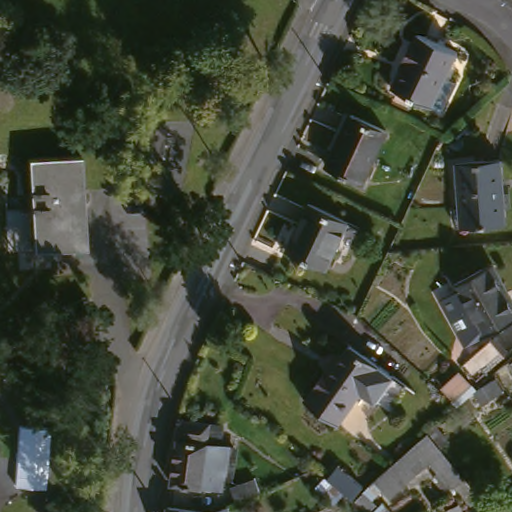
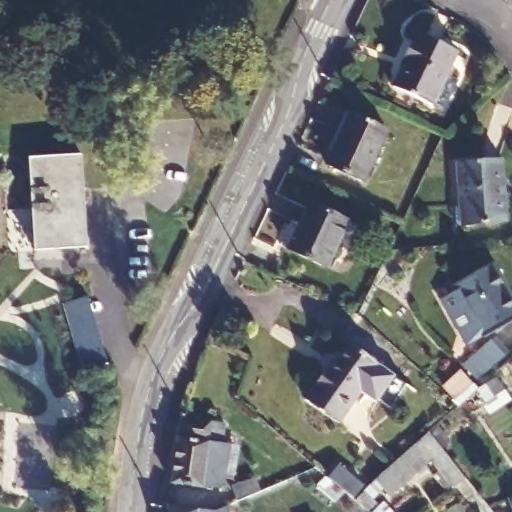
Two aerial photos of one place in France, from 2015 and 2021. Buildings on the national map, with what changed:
unchanged [(384,90),(395,66),(392,64),(402,43),(405,44),(410,34),(449,54),(437,79),(449,84),(434,114),(422,108),(384,90)]
unchanged [(384,129),(359,182),(323,166),(350,111),(384,129)]
unchanged [(84,250),(33,252),(29,158),(80,157),(84,250)]
unchanged [(504,161),(504,221),(461,224),(459,164),(504,161)]
unchanged [(349,225),(328,270),(287,251),(309,205),(349,225)]
unchanged [(436,299),(452,290),(449,284),(489,263),(512,305),(512,319),(478,337),(478,336),(461,345),(454,332),(436,299)]
new [(88,295),(107,362),(83,370),(63,304),(88,295)]
unchanged [(492,370),(479,381),(461,362),(487,337),(506,358),(492,370)]
unchanged [(390,376),(369,405),(355,393),(332,423),(298,397),(321,367),(325,371),(347,343),(390,376)]
unchanged [(460,398),(456,402),(441,384),(457,371),(472,387),(460,398)]
unchanged [(500,389),(481,401),(474,389),(492,377),(500,389)]
unchanged [(171,484),(180,420),(208,423),(206,443),(200,487),(171,484)]
unchanged [(451,489),(430,466),(389,502),(375,484),(427,437),(462,480),(451,489)]
unchanged [(229,445),(223,489),(200,487),(206,443),(229,445)]
unchanged [(362,488),(352,499),(326,476),(336,465),(362,488)]
unchanged [(391,512),(377,512),(383,505),(391,512)]
unchanged [(200,512),(158,512),(158,507),(200,512)]
unchanged [(217,512),(205,512),(217,507),(217,512)]
unchanged [(512,508),(512,512),(510,508),(512,508)]

